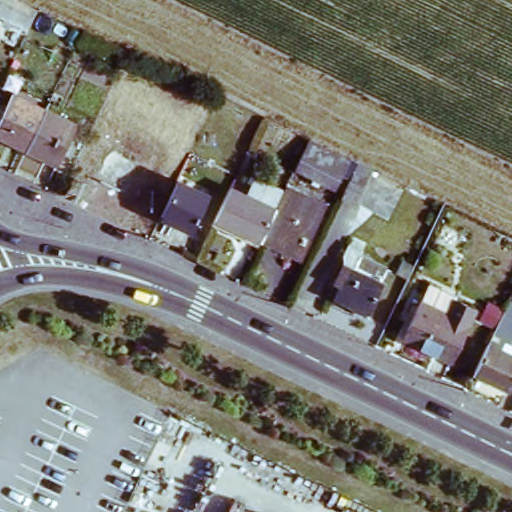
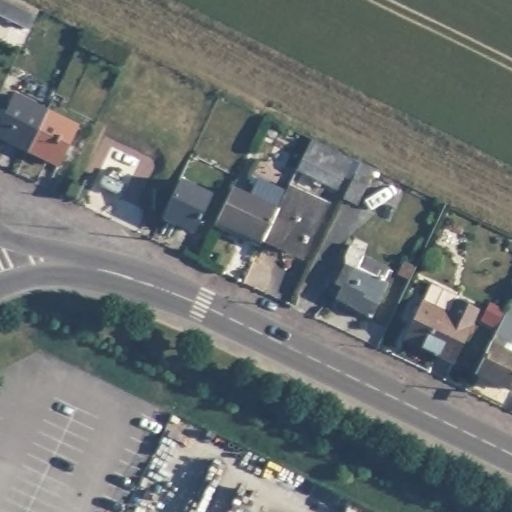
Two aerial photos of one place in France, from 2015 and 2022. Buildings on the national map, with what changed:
unchanged [(0,0),(16,0),(37,9),(30,34),(0,14),(0,0)]
unchanged [(75,48),(82,30),(124,52),(119,69),(75,48)]
unchanged [(0,123),(15,91),(48,107),(27,151),(0,139),(0,123)]
unchanged [(59,166),(27,151),(48,107),(79,122),(59,166)]
unchanged [(298,160),(307,141),(350,160),(340,179),(298,160)]
unchanged [(127,178),(100,165),(107,149),(109,151),(112,142),(130,152),(127,160),(134,164),(127,178)]
unchanged [(350,183),(365,152),(378,159),(360,197),(347,190),(350,183)]
unchanged [(212,193),(194,229),(162,214),(180,178),(212,193)]
unchanged [(329,201),(314,233),(309,230),(299,250),(265,234),(278,207),(290,182),(329,201)]
unchanged [(234,186),(278,207),(265,234),(260,244),(217,224),(234,186)]
unchanged [(333,283),(343,262),(342,259),(349,244),(362,250),(360,255),(389,270),(367,315),(334,299),(339,287),(333,283)]
unchanged [(425,289),(422,287),(425,279),(450,291),(452,300),(472,309),(450,359),(402,337),(425,289)]
unchanged [(478,371),(492,342),(511,300),(512,301),(512,326),(502,347),(512,352),(512,382),(510,386),(478,371)]

